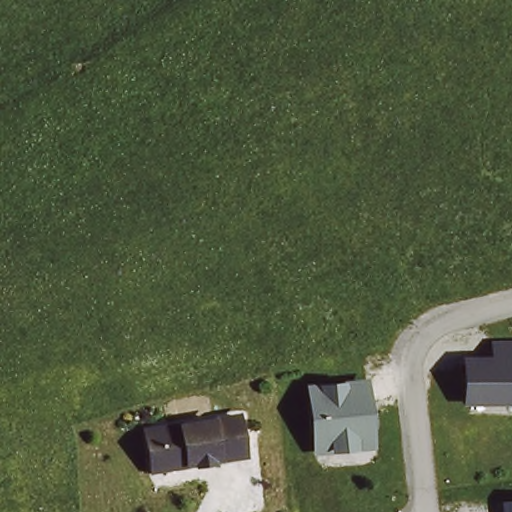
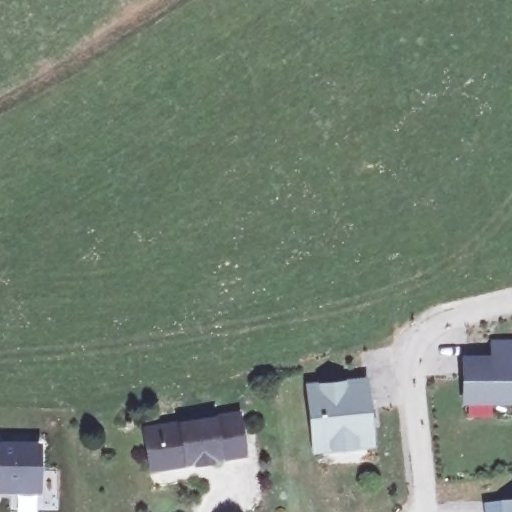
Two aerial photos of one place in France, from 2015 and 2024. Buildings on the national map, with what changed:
unchanged [(500,353),(500,338),(512,338),(512,365),(506,365),(507,393),(463,393),(463,353),(500,353)]
unchanged [(363,383),(368,441),(353,442),(353,447),(331,449),(331,445),(315,446),(310,388),(363,383)]
unchanged [(150,428),(168,426),(206,420),(231,416),(238,455),(212,459),(212,457),(172,462),(155,465),(150,428)]
new [(42,493),(0,493),(0,441),(42,442),(42,493)]
unchanged [(503,512),(502,500),(512,499),(512,512),(503,512)]

